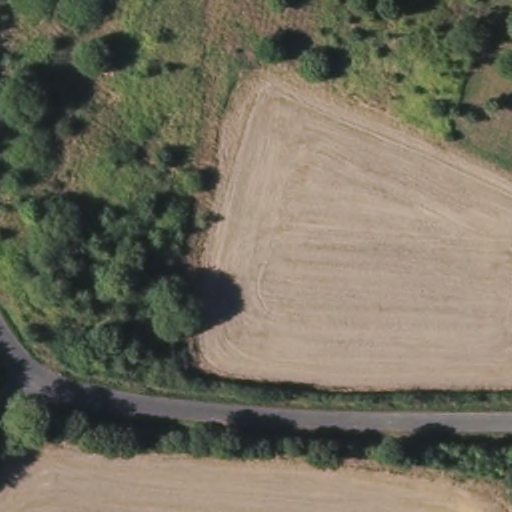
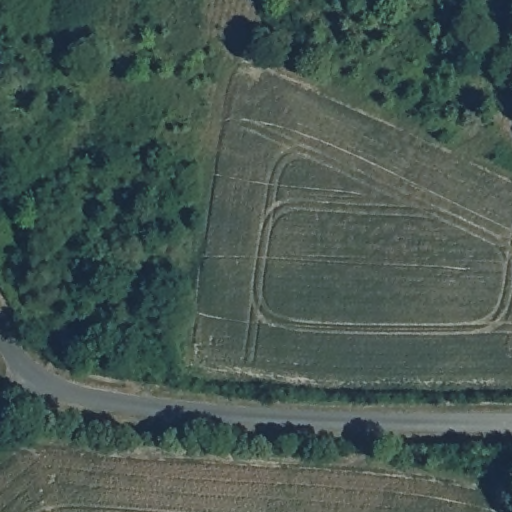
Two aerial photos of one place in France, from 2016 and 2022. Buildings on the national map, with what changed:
[]

